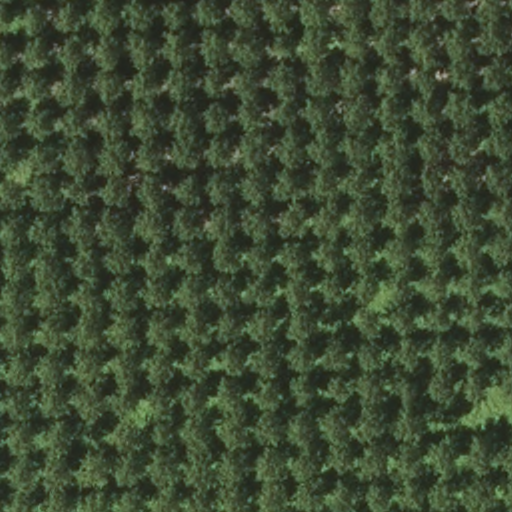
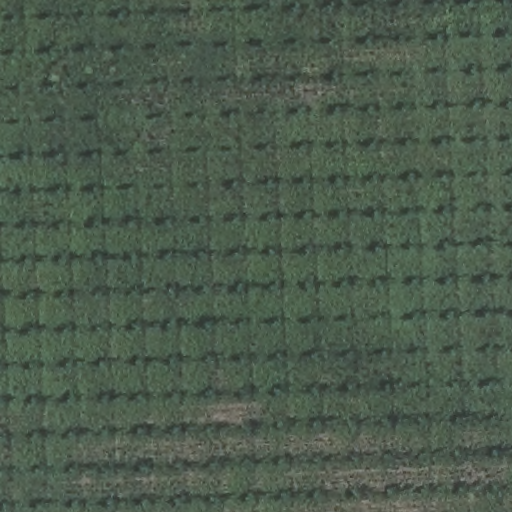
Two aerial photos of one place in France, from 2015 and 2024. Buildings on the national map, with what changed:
[]

